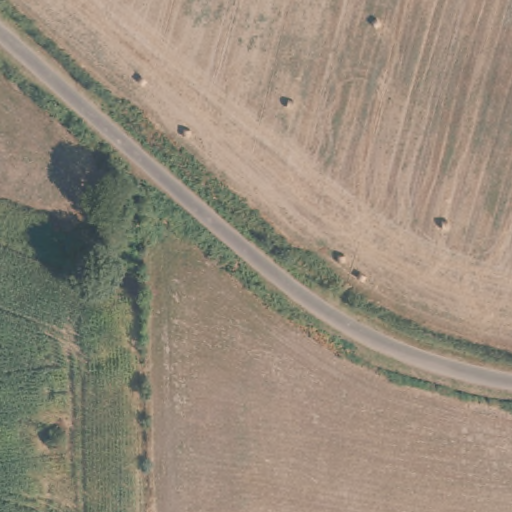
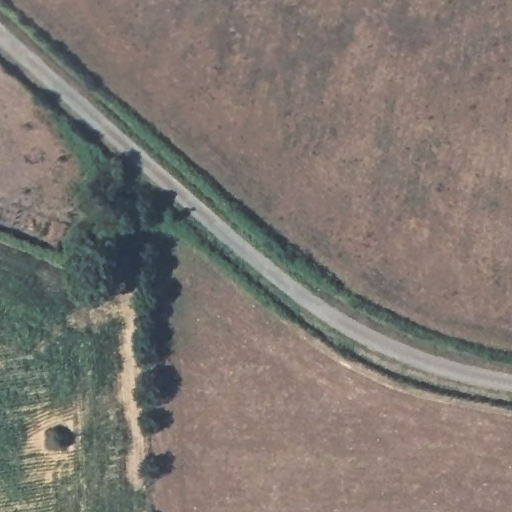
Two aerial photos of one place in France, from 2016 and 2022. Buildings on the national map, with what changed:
[]

